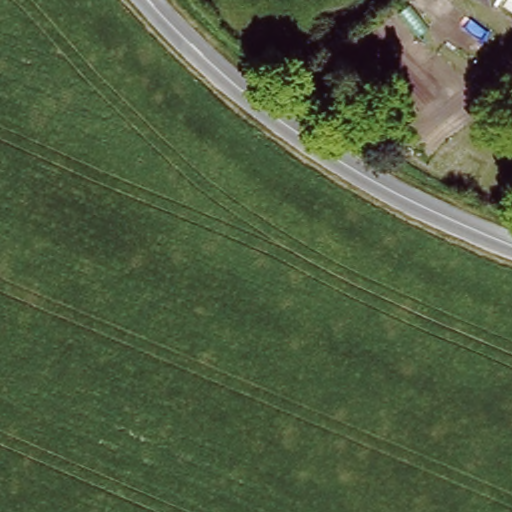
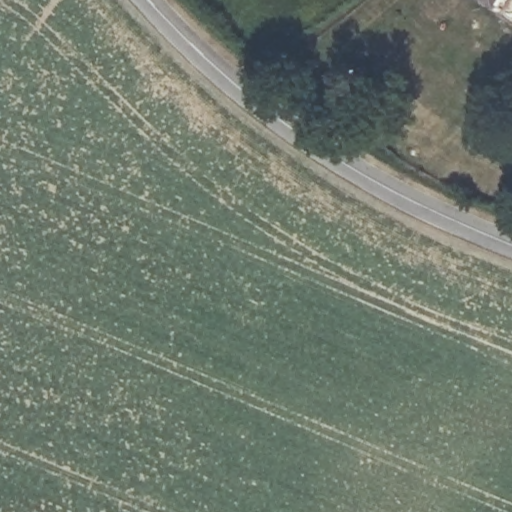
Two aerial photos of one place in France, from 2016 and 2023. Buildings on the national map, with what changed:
unchanged [(469,0),(491,0),(483,11),(469,0)]

